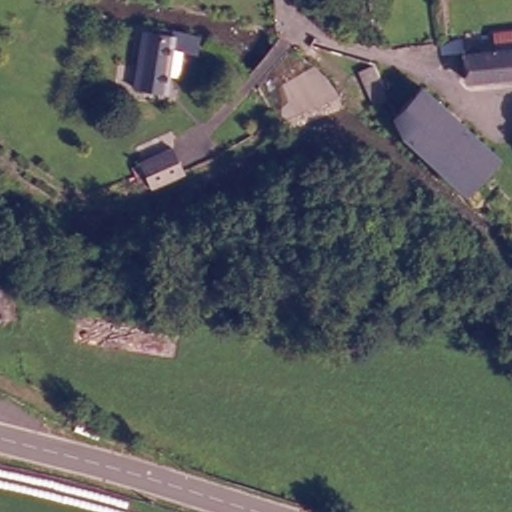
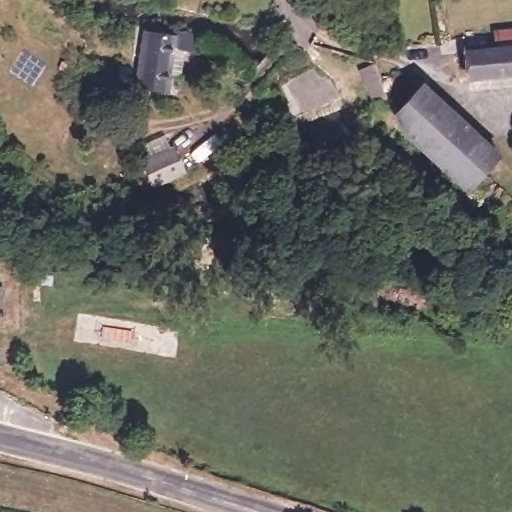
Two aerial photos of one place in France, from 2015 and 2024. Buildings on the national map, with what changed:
unchanged [(168,81),(167,99),(134,96),(139,36),(170,41),(171,37),(196,41),(194,58),(180,57),(178,83),(168,81)]
unchanged [(467,60),(496,57),(494,39),(512,37),(512,84),(472,89),(467,60)]
unchanged [(403,137),(394,114),(387,98),(371,104),(356,71),(373,63),(385,93),(402,74),(419,82),(503,155),(500,158),(475,185),(469,192),(403,137)]
unchanged [(140,165),(171,149),(184,172),(151,187),(140,165)]
unchanged [(0,324),(0,294),(3,324),(0,324)]

